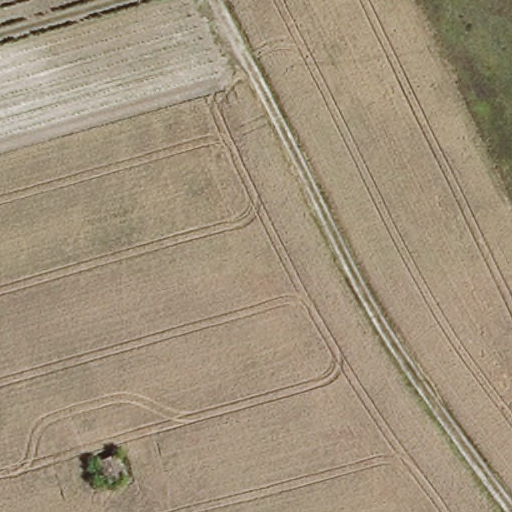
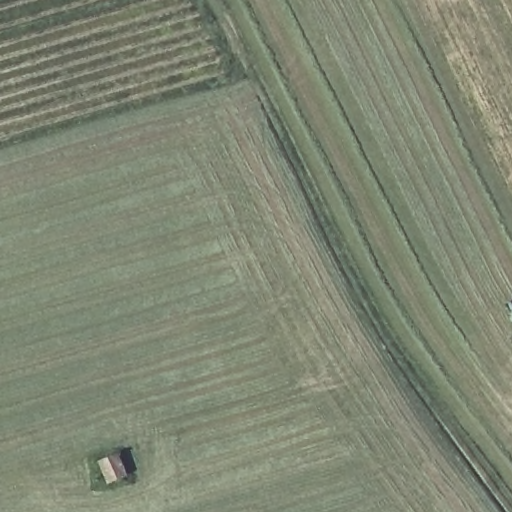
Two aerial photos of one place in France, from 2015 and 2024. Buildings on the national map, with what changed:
unchanged [(135,475),(112,485),(102,457),(124,448),(135,475)]

